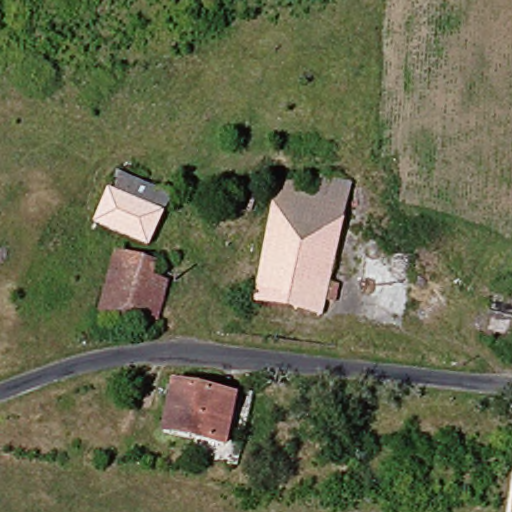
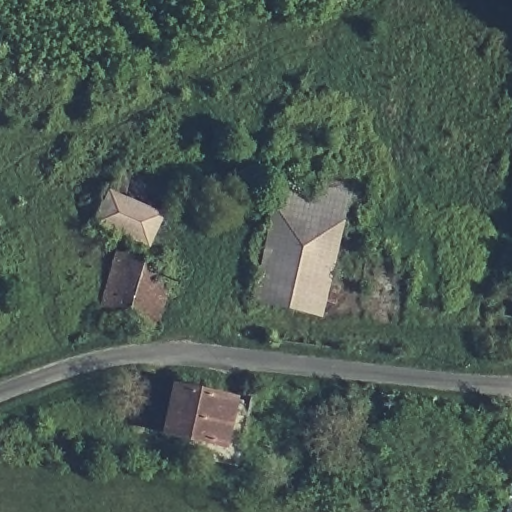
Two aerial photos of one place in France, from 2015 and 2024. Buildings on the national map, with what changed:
unchanged [(111,176),(162,200),(155,217),(103,196),(111,176)]
unchanged [(316,177),(343,182),(322,282),(333,285),(329,302),(319,300),(315,316),(243,300),(268,192),(270,182),(288,186),(287,196),(312,201),(316,177)]
unchanged [(155,217),(143,248),(91,227),(103,196),(155,217)]
unchanged [(150,330),(132,324),(108,317),(93,313),(111,252),(149,266),(143,287),(162,292),(150,330)]
unchanged [(159,450),(168,382),(223,390),(214,457),(159,450)]

